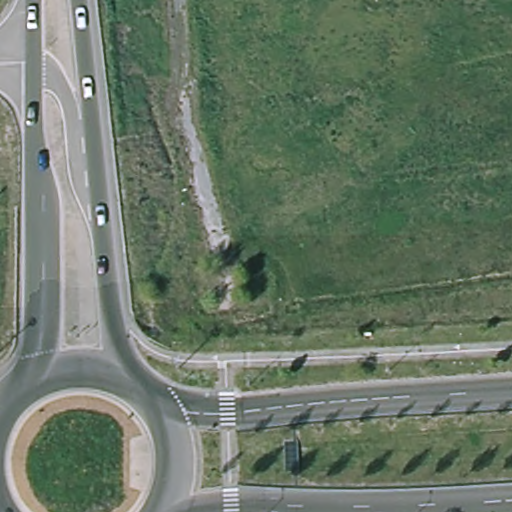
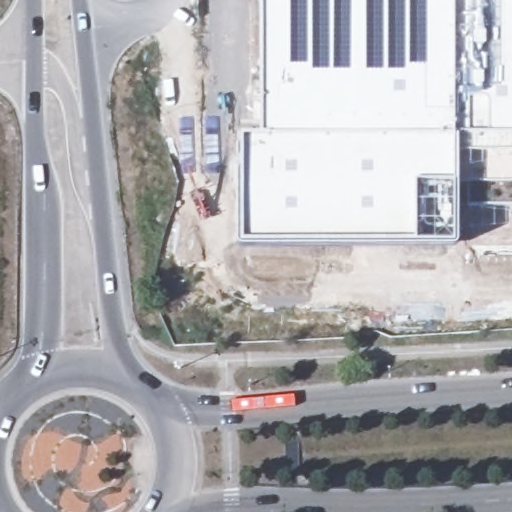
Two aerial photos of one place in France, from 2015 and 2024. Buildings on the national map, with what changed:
new [(512,207),(459,208),(458,242),(457,245),(455,248),(238,248),(238,135),(261,136),(261,0),(512,0),(512,207)]

